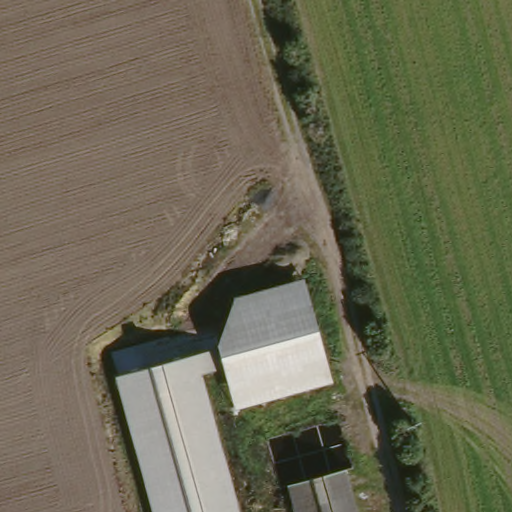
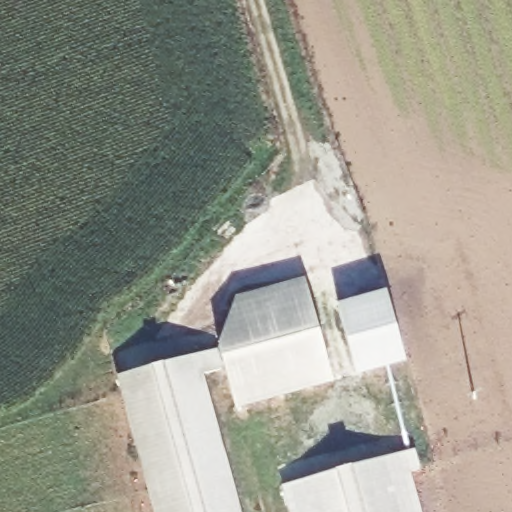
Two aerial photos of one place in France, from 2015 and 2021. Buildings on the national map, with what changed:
unchanged [(236,409),(216,343),(238,296),(306,278),(334,381),(236,409)]
new [(337,305),(386,292),(406,362),(357,376),(337,305)]
unchanged [(211,350),(216,370),(203,373),(241,512),(154,512),(116,376),(211,350)]
new [(404,456),(416,452),(421,470),(411,472),(421,512),(364,512),(353,471),(404,456)]
unchanged [(300,512),(294,487),(353,471),(364,512),(300,512)]

